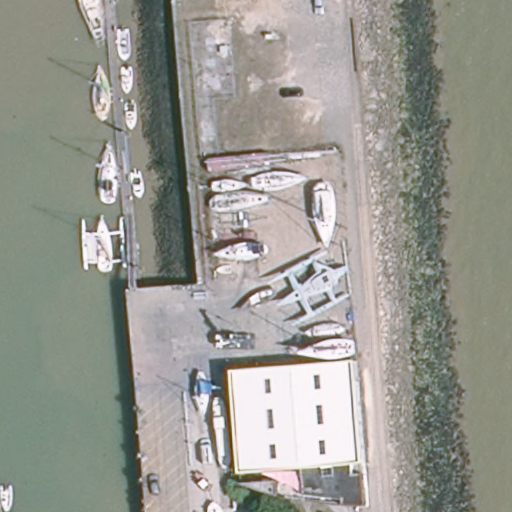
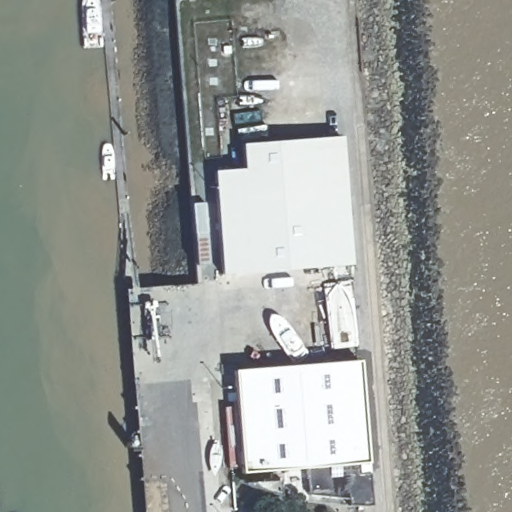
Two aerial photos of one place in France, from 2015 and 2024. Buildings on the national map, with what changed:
unchanged [(111,0),(124,0),(124,5),(111,5),(111,0)]
demolished [(199,66),(225,64),(228,85),(201,88),(199,66)]
new [(336,140),(345,268),(214,278),(207,173),(237,171),(235,147),(336,140)]
unchanged [(363,507),(301,502),(299,470),(239,473),(231,371),(353,360),(363,507)]

